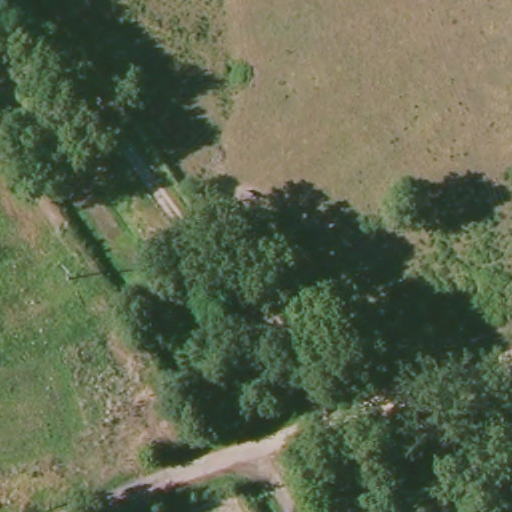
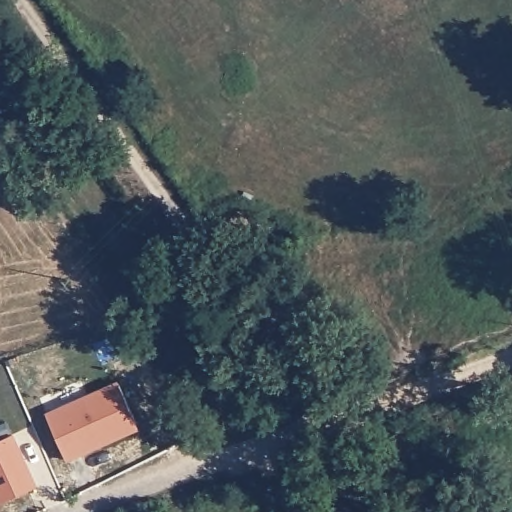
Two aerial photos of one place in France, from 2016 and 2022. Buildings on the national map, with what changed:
new [(66,461),(46,414),(118,382),(139,429),(66,461)]

